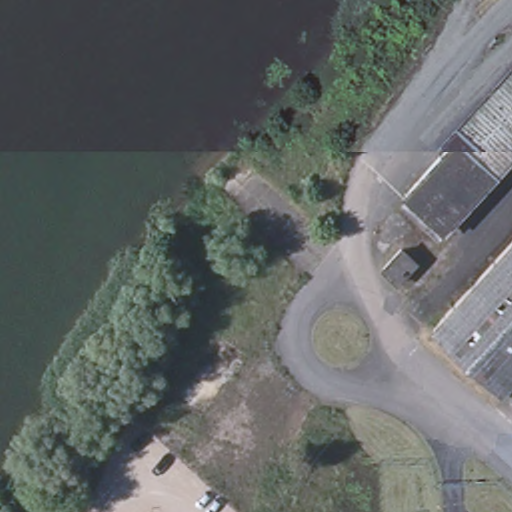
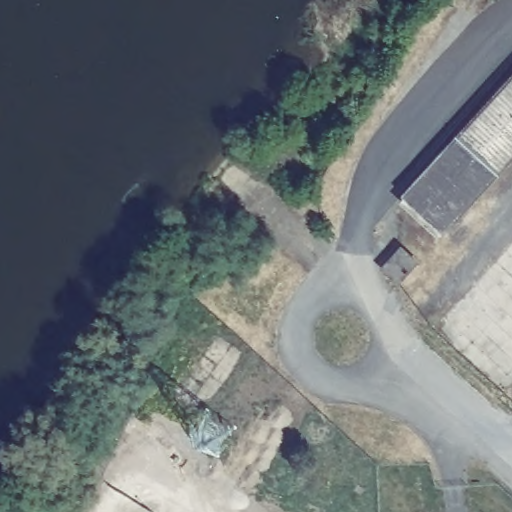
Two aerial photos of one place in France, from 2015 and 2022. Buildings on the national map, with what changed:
unchanged [(448,229),(410,194),(512,84),(512,159),(448,229)]
unchanged [(402,281),(388,268),(406,247),(420,260),(402,281)]
demolished [(510,387),(440,322),(473,290),(512,248),(512,384),(510,387)]

